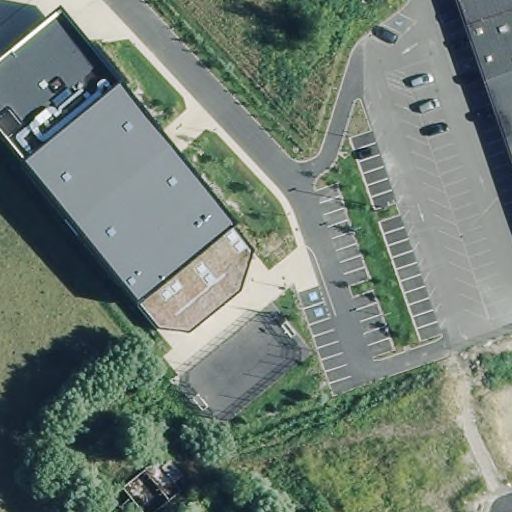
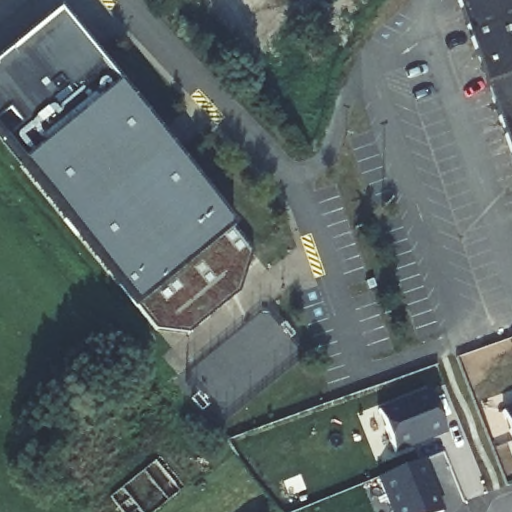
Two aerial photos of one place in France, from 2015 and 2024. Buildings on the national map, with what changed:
unchanged [(512,0),(512,162),(497,167),(488,141),(505,136),(487,84),(462,91),(443,36),(467,28),(462,13),(457,0),(512,0)]
unchanged [(85,46),(95,43),(128,83),(122,90),(252,251),(240,293),(188,334),(155,330),(136,308),(0,142),(0,57),(57,10),(85,46)]
new [(512,343),(510,340),(512,339),(512,343)]
new [(428,391),(445,433),(393,453),(377,411),(428,391)]
new [(512,406),(512,438),(501,410),(512,406)]
new [(420,461),(440,512),(392,512),(378,478),(420,461)]

